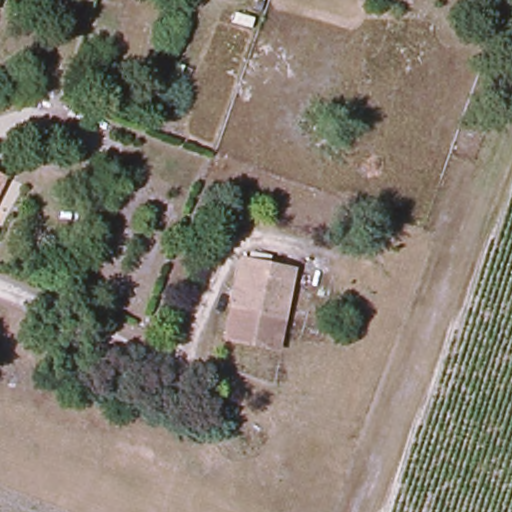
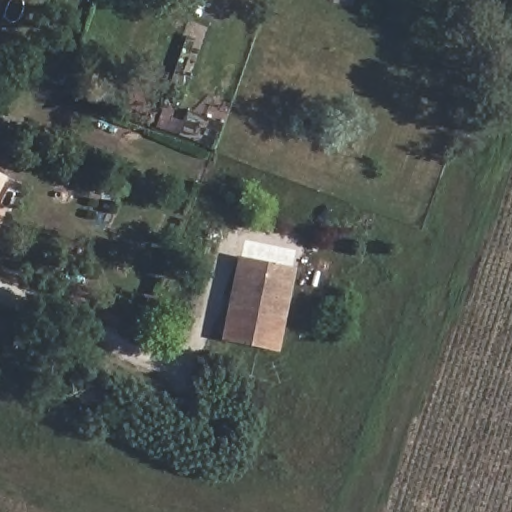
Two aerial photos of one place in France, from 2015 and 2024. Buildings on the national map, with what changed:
unchanged [(0,187),(0,183),(1,184),(0,187)]
unchanged [(293,278),(274,357),(220,343),(241,267),(293,278)]

